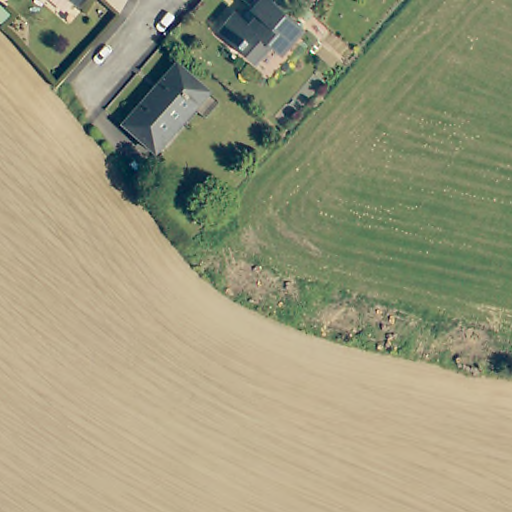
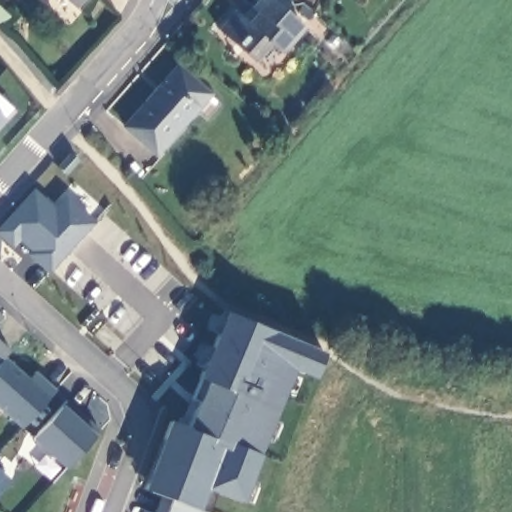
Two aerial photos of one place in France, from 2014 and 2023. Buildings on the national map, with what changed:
unchanged [(75,0),(87,0),(82,6),(75,0)]
unchanged [(295,0),(290,6),(307,22),(286,48),(275,39),(259,56),(222,24),(239,4),(247,11),(255,1),(256,0),(295,0)]
unchanged [(129,126),(182,66),(213,94),(225,104),(211,120),(200,110),(161,154),(129,126)]
new [(0,126),(0,115),(5,120),(0,126)]
new [(66,174),(57,165),(70,152),(77,160),(66,174)]
new [(317,368),(292,358),(237,500),(203,489),(196,506),(209,511),(209,512),(159,512),(164,500),(137,490),(163,420),(181,427),(199,377),(222,310),(322,350),(317,368)]
new [(0,319),(0,313),(4,315),(0,319)]
new [(0,407),(0,340),(12,350),(7,355),(28,377),(35,370),(55,387),(22,426),(0,407)]
new [(65,468),(31,437),(61,403),(94,434),(65,468)]

